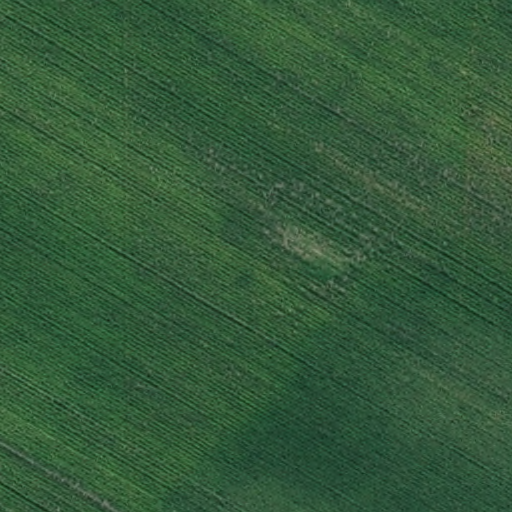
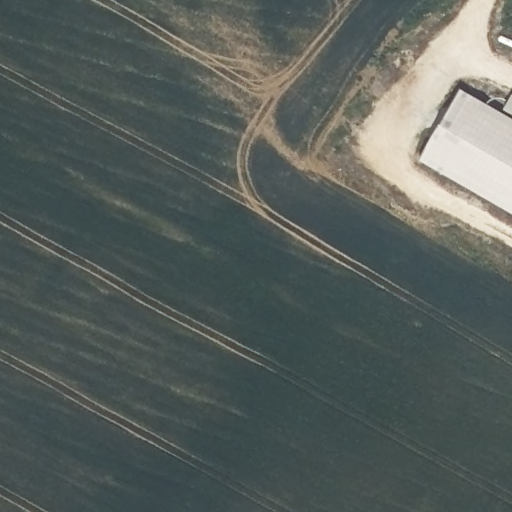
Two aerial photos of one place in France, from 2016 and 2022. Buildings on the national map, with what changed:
new [(420,159),(461,89),(512,118),(512,213),(420,159)]

